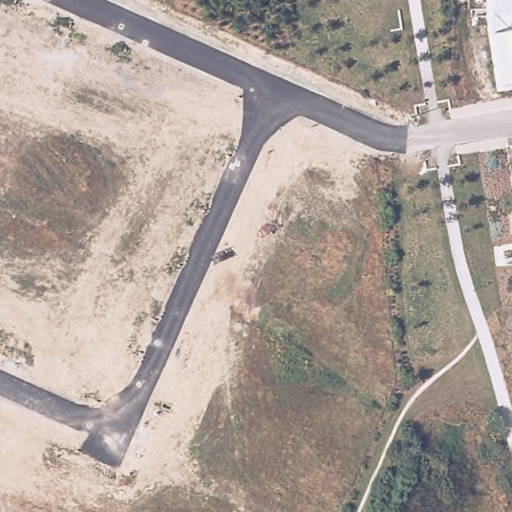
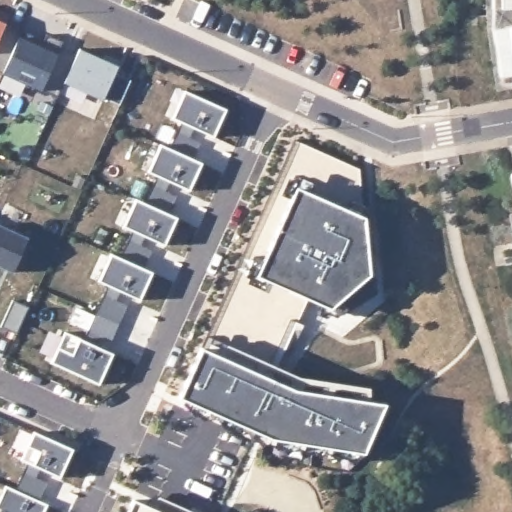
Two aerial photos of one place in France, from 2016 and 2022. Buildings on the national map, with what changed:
unchanged [(493,27),(492,0),(512,0),(512,73),(500,74),(493,27)]
unchanged [(5,22),(44,39),(47,35),(63,41),(61,46),(78,52),(66,83),(58,94),(43,87),(41,89),(2,73),(3,71),(0,70),(0,20),(5,22)]
new [(78,52),(80,47),(120,66),(116,75),(130,80),(120,103),(106,96),(103,101),(66,83),(78,52)]
new [(97,313),(104,298),(109,286),(100,282),(112,254),(122,258),(129,241),(134,231),(124,227),(136,199),(146,204),(153,187),(158,176),(148,172),(160,144),(170,149),(177,132),(182,123),(172,118),(184,91),(226,109),(214,137),(194,128),(190,138),(201,143),(193,159),(202,163),(190,191),(171,182),(166,192),(177,197),(169,214),(178,218),(166,246),(146,237),(142,247),(152,252),(145,269),(154,273),(141,300),(122,292),(116,304),(127,309),(120,324),(113,341),(102,336),(98,346),(114,354),(100,384),(52,363),(66,332),(85,340),(89,331),(97,313)]
new [(296,187),(257,275),(306,297),(297,323),(290,320),(265,376),(201,348),(295,140),(358,168),(359,215),(296,187)]
new [(296,187),(359,215),(365,217),(369,274),(330,308),(306,297),(257,275),(296,187)]
new [(7,229),(9,225),(22,232),(6,268),(0,266),(0,226),(7,229)]
new [(14,300),(30,307),(18,334),(2,327),(14,300)]
new [(201,348),(265,376),(295,390),(385,404),(363,453),(348,461),(332,452),(310,451),(302,454),(276,449),(269,442),(261,444),(244,430),(237,431),(226,428),(214,417),(200,417),(184,404),(186,400),(180,397),(201,348)]
new [(6,486),(16,490),(28,463),(22,460),(30,447),(35,433),(71,449),(61,476),(40,468),(36,477),(47,482),(38,501),(47,505),(43,512),(0,512),(0,498),(6,486)]
new [(132,497),(164,512),(126,512),(132,497)]

